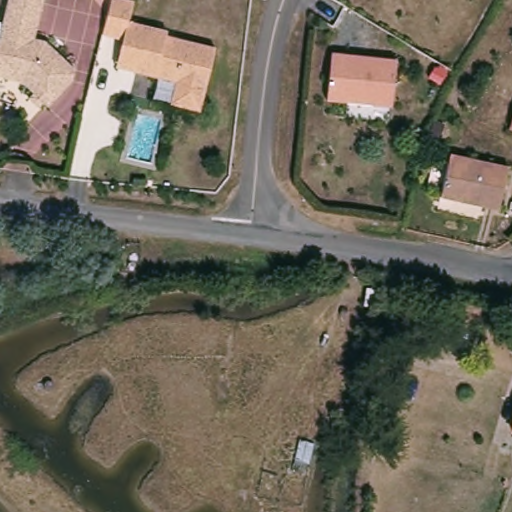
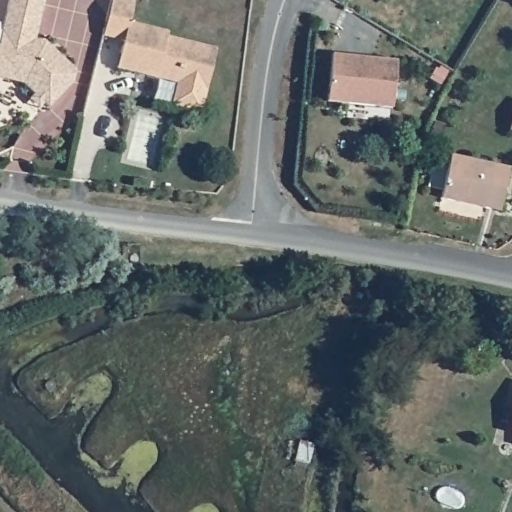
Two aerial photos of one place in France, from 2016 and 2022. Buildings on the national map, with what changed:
unchanged [(36,97),(25,86),(0,80),(0,34),(5,35),(13,0),(47,0),(36,43),(47,46),(77,75),(74,86),(49,111),(44,106),(39,111),(31,103),(36,97)]
unchanged [(123,56),(126,45),(106,40),(116,0),(136,5),(132,23),(170,35),(169,40),(218,52),(202,115),(173,108),(178,86),(158,81),(120,71),(123,56)]
unchanged [(397,59),(392,106),(328,99),(333,52),(397,59)]
unchanged [(466,92),(458,107),(448,102),(456,87),(466,92)]
unchanged [(444,124),(438,139),(428,136),(434,120),(444,124)]
unchanged [(509,129),(512,120),(512,130),(509,129)]
unchanged [(441,197),(450,154),(509,167),(500,210),(482,206),(463,202),(441,197)]

